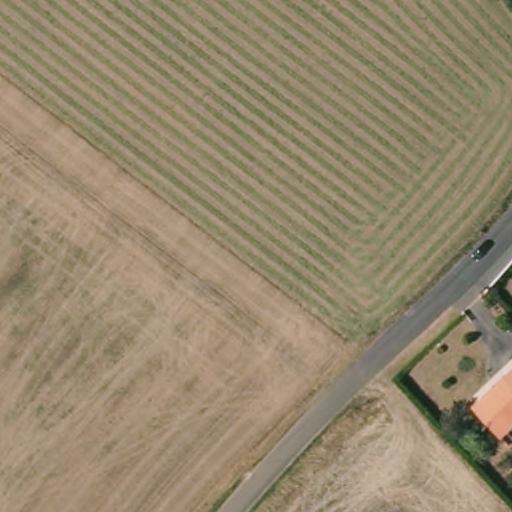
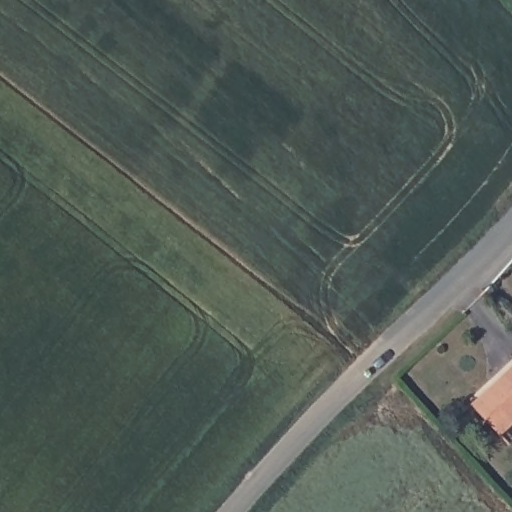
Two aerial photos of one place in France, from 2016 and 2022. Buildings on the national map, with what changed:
unchanged [(502,432),(475,400),(512,369),(512,424),(502,432)]

